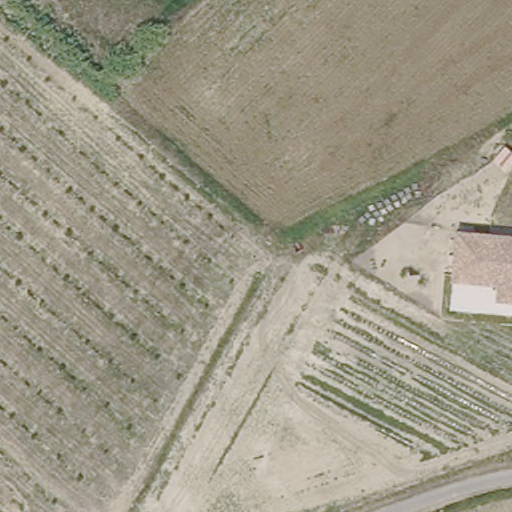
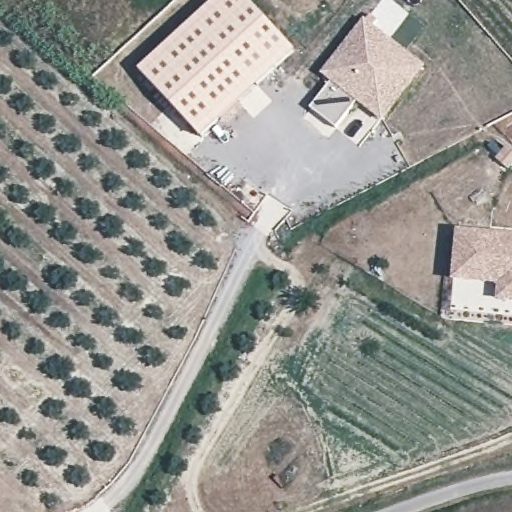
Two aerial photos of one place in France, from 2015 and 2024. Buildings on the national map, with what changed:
new [(295,51),(201,139),(138,70),(215,0),(247,0),(295,51)]
new [(377,20),(374,25),(423,64),(383,121),(355,102),(336,128),(310,109),(331,82),(321,75),(370,14),(377,20)]
unchanged [(499,302),(500,287),(453,283),(454,278),(457,235),(512,239),(512,303),(499,302)]

